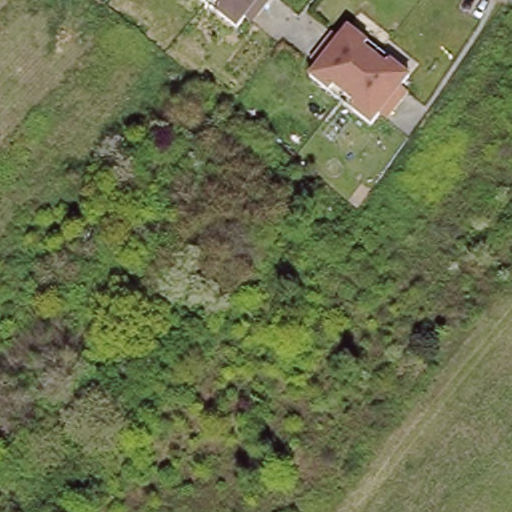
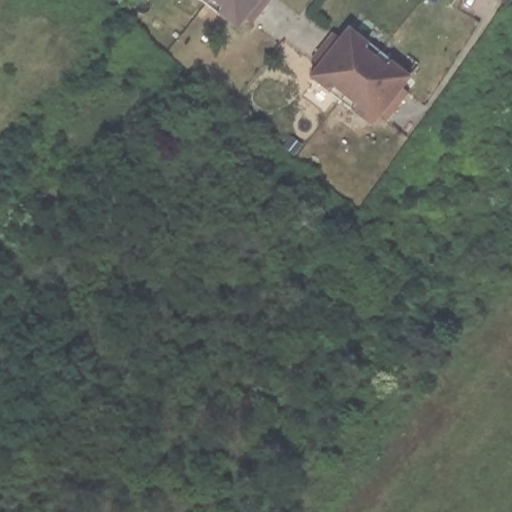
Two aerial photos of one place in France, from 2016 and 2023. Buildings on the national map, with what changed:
unchanged [(247,16),(235,30),(198,0),(271,0),(253,23),(247,16)]
unchanged [(410,76),(402,87),(408,92),(387,121),(380,115),(370,127),(306,76),(345,26),(410,76)]
unchanged [(66,395),(82,407),(63,430),(48,418),(66,395)]

